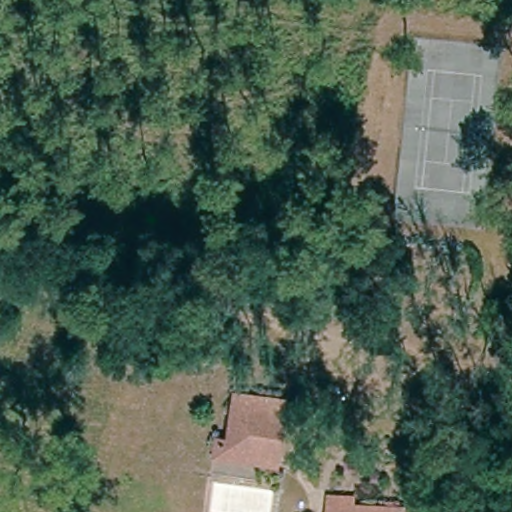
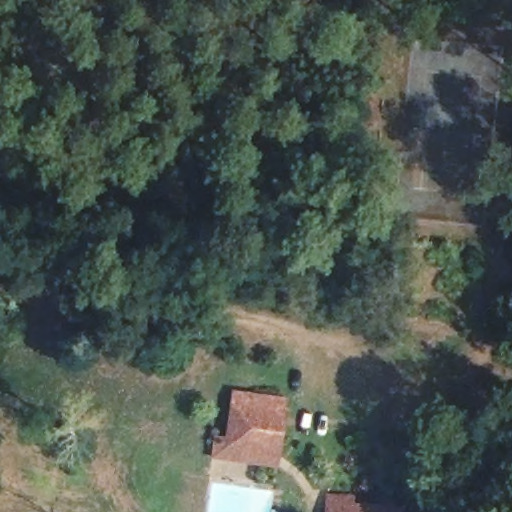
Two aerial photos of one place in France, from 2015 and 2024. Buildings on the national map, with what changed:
unchanged [(274,463),(229,458),(234,394),(283,398),(274,463)]
unchanged [(328,503),(349,504),(349,512),(327,512),(328,503)]

